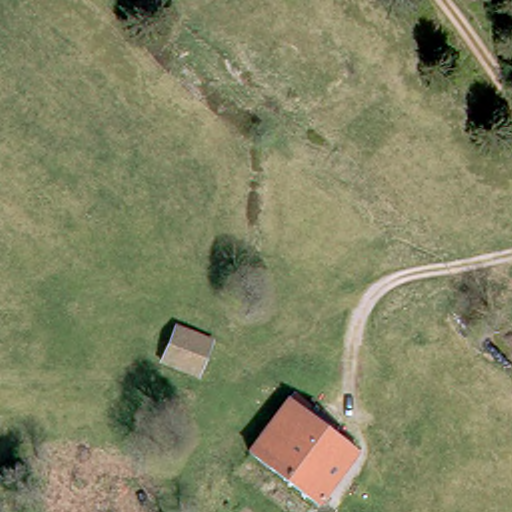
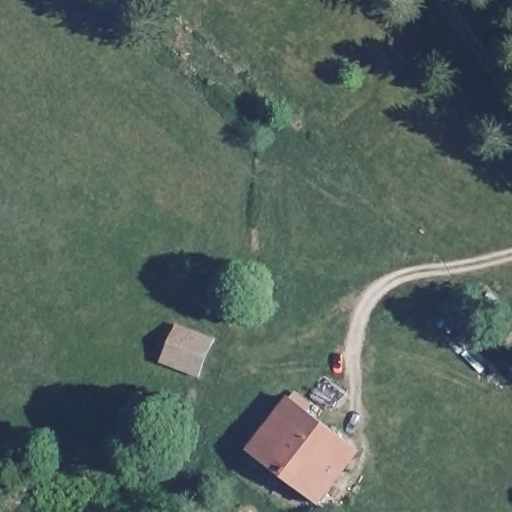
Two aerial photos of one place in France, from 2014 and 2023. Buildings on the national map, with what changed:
unchanged [(196,372),(157,353),(174,323),(213,341),(196,372)]
unchanged [(292,392),(310,406),(305,412),(354,449),(314,501),(246,451),(292,392)]

